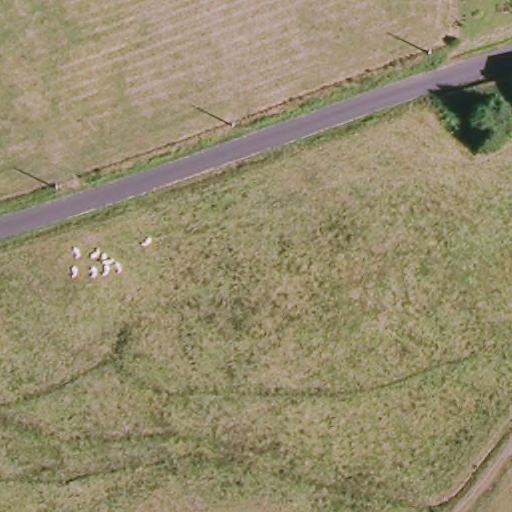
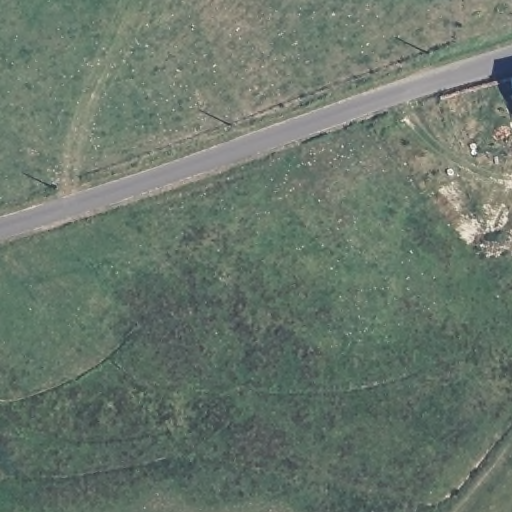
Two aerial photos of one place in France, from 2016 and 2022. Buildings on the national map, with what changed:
unchanged [(476,3),(475,0),(498,0),(499,1),(476,3)]

